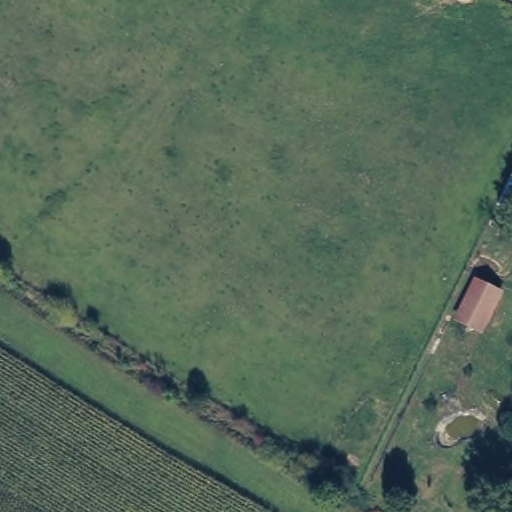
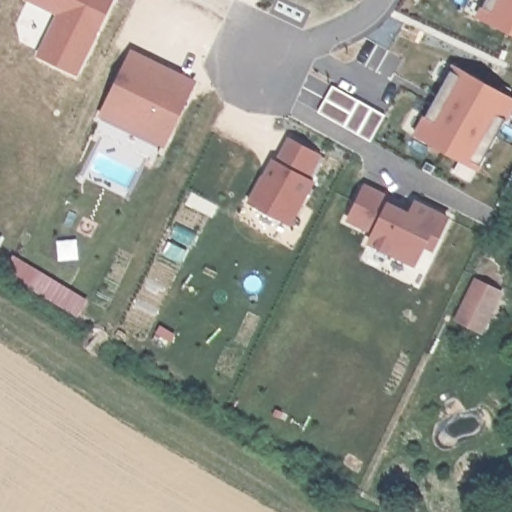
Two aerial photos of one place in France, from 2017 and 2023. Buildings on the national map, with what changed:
new [(37,56),(57,15),(28,0),(111,0),(75,75),(37,56)]
new [(484,0),(512,0),(512,34),(476,18),(484,0)]
new [(144,135),(122,125),(101,114),(104,106),(130,54),(165,71),(162,78),(168,81),(170,76),(191,87),(167,136),(163,145),(144,135)]
new [(454,64),(512,97),(512,114),(481,172),(413,135),(454,64)]
new [(318,114),(335,86),(388,115),(372,143),(318,114)]
new [(247,203),(272,159),(277,161),(290,138),(324,157),(310,179),(317,182),(292,227),(247,203)]
new [(367,244),(372,235),(347,223),(366,185),(411,206),(414,200),(451,217),(434,253),(425,249),(415,267),(367,244)]
new [(78,315),(66,307),(6,269),(13,257),(73,294),(86,302),(78,315)]
unchanged [(503,289),(482,334),(451,321),(474,277),(503,289)]

